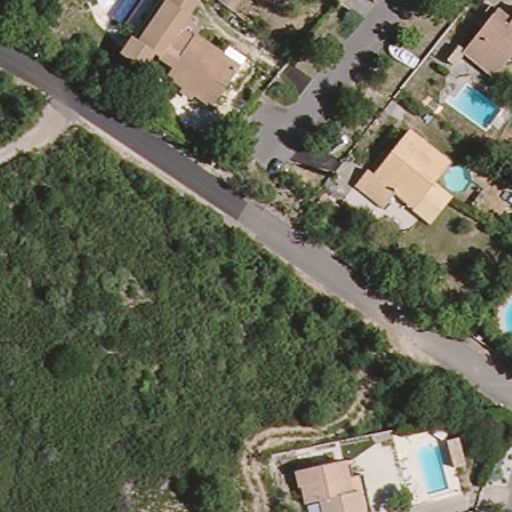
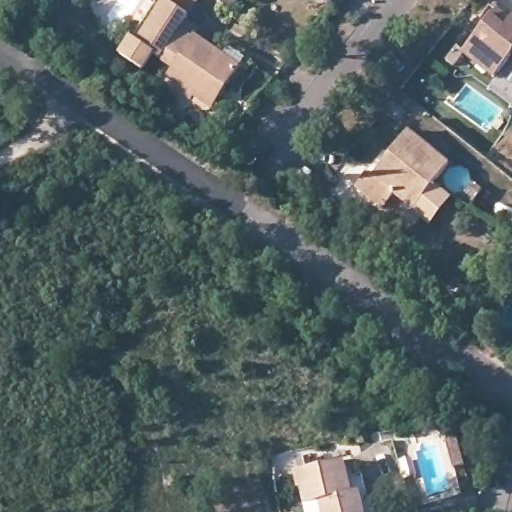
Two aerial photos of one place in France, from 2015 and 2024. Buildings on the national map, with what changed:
unchanged [(168,77),(174,68),(154,55),(143,71),(122,56),(134,39),(160,0),(165,0),(168,2),(191,18),(188,23),(201,31),(196,37),(241,67),(216,103),(213,108),(196,96),(168,77)]
unchanged [(217,0),(240,0),(231,11),(217,0)]
unchanged [(464,57),(497,16),(512,26),(512,61),(495,82),(464,57)]
unchanged [(498,117),(505,122),(499,130),(493,125),(498,117)]
unchanged [(429,212),(419,204),(401,189),(389,204),(361,181),(373,166),(379,171),(414,126),(455,160),(438,181),(448,188),(429,212)]
unchanged [(323,195),(340,207),(334,215),(317,203),(323,195)]
unchanged [(511,277),(512,277),(512,291),(510,292),(511,277)]
unchanged [(458,439),(465,466),(454,469),(447,442),(458,439)]
unchanged [(372,512),(323,512),(321,501),(306,504),(303,487),(300,488),(296,472),(346,462),(349,478),(364,475),(372,512)]

